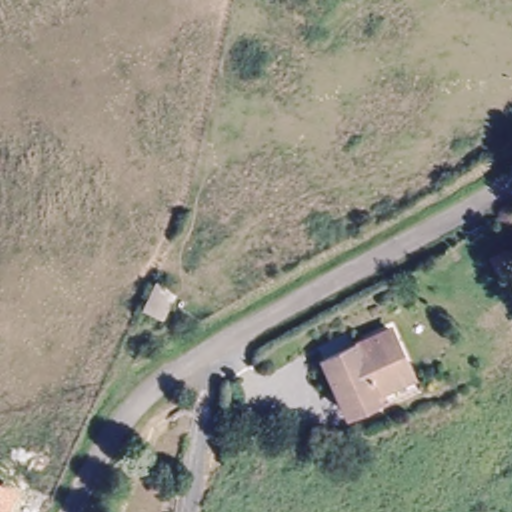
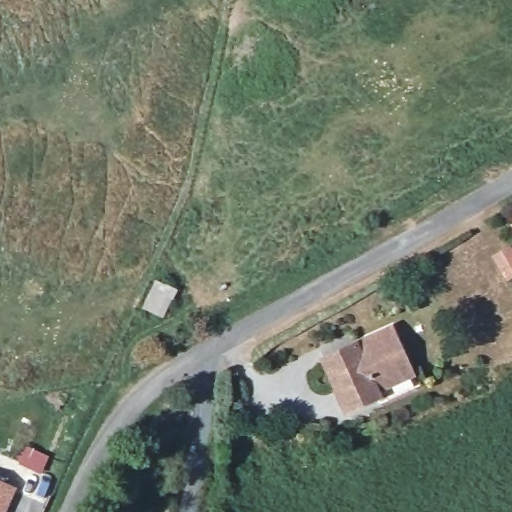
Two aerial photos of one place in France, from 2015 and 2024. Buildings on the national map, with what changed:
unchanged [(390,333),(408,377),(374,394),(377,400),(345,413),(324,365),(390,333)]
unchanged [(5,512),(0,512),(0,479),(16,486),(5,512)]

